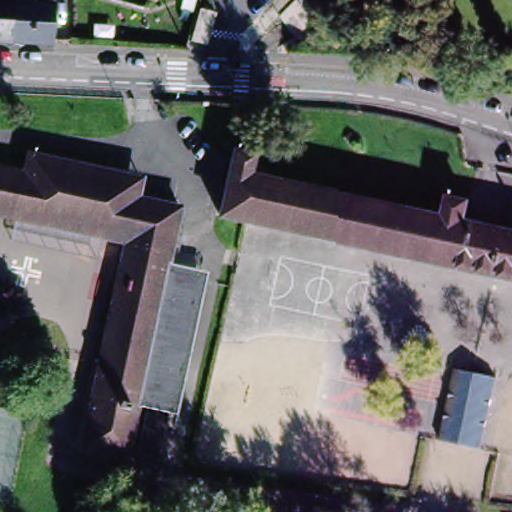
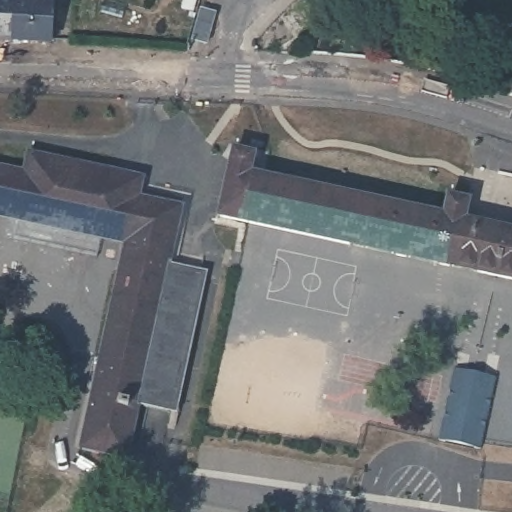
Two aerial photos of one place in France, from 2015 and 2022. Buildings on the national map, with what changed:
unchanged [(59,0),(56,46),(35,45),(16,45),(0,44),(0,0),(59,0)]
unchanged [(206,18),(221,21),(213,51),(198,49),(206,18)]
unchanged [(233,157),(252,162),(248,180),(443,223),(447,204),(469,208),(464,226),(512,237),(512,284),(219,221),(233,157)]
unchanged [(0,219),(0,173),(25,179),(30,159),(118,179),(113,197),(181,213),(156,323),(171,327),(156,397),(141,395),(125,463),(80,452),(127,248),(103,242),(20,224),(0,219)]
unchanged [(99,259),(17,241),(20,224),(103,242),(99,259)]
unchanged [(480,382),(458,378),(444,447),(438,445),(454,374),(494,383),(479,454),(464,451),(480,382)]
unchanged [(444,447),(458,378),(480,382),(464,451),(444,447)]

